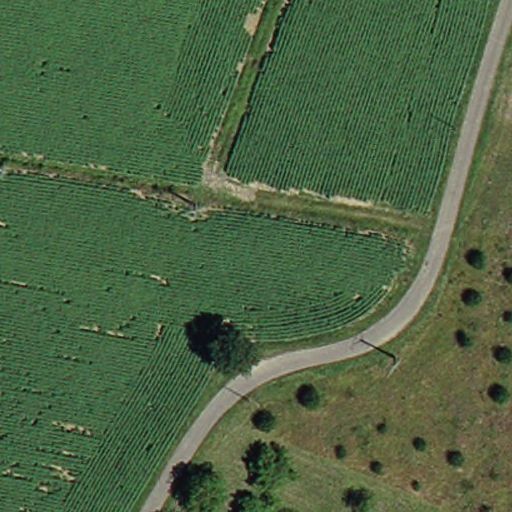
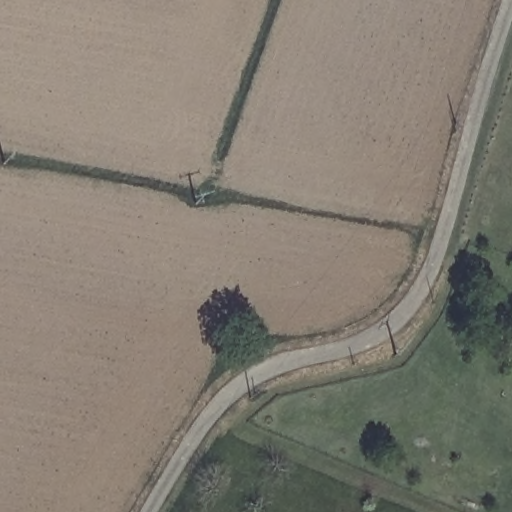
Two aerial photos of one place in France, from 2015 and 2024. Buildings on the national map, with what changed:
[]

